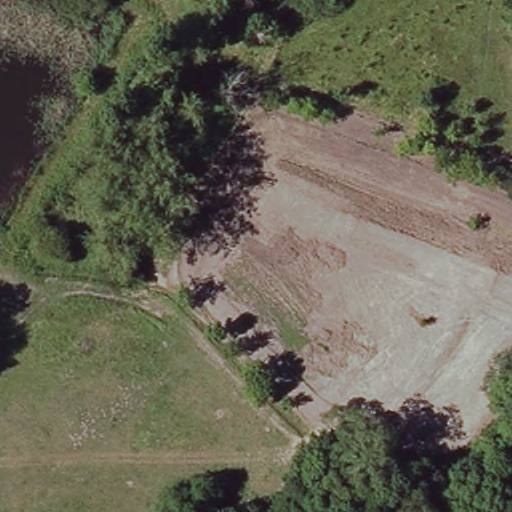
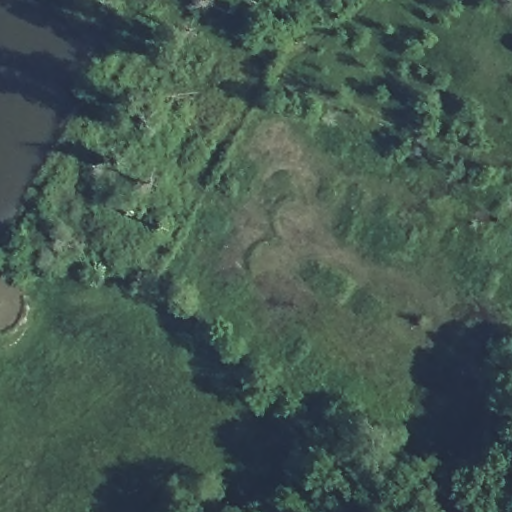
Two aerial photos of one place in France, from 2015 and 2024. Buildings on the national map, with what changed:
[]

